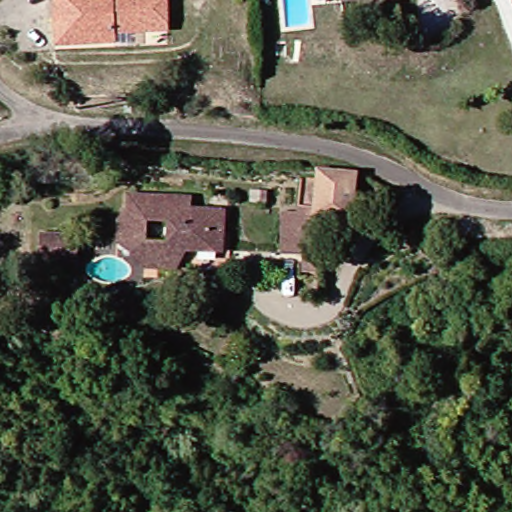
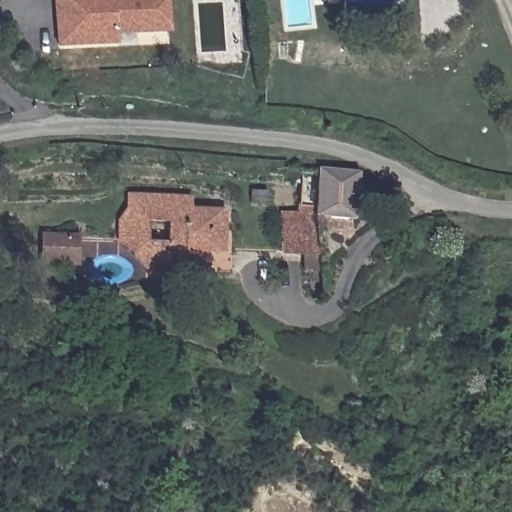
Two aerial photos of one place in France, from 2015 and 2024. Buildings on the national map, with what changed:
unchanged [(62,0),(172,0),(172,36),(116,36),(116,47),(79,48),(63,48),(62,21),(62,0)]
unchanged [(348,0),(397,0),(348,4),(348,0)]
unchanged [(362,207),(326,212),(324,175),(362,175),(362,207)]
unchanged [(142,260),(142,243),(127,242),(127,221),(135,213),(136,195),(197,196),(197,208),(232,208),(230,250),(207,250),(206,244),(197,244),(185,270),(152,269),(142,260)]
unchanged [(329,253),(295,256),(293,216),(326,212),(329,253)]
unchanged [(45,232),(83,231),(83,268),(49,265),(45,232)]

